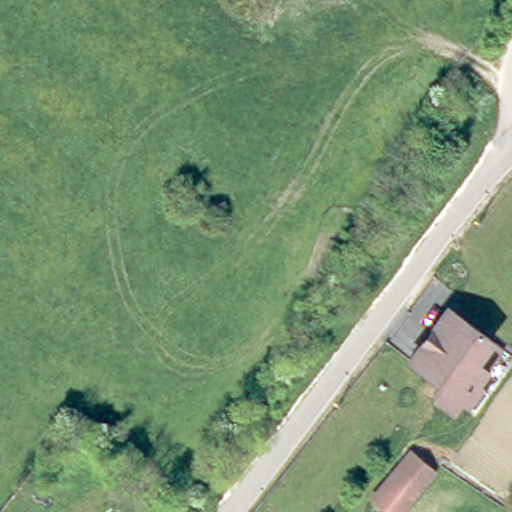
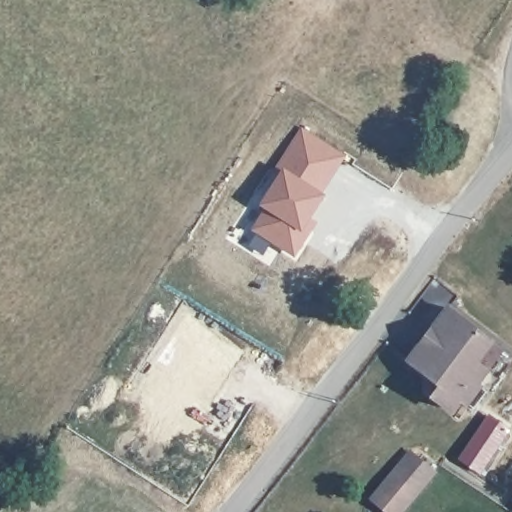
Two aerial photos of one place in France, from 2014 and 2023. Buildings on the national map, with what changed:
new [(252,229),(265,209),(260,205),(282,171),(275,167),(300,126),(347,155),(324,192),(327,194),(312,217),(319,222),(295,257),(252,229)]
unchanged [(473,385),(477,388),(466,402),(460,397),(451,409),(432,395),(440,383),(412,362),(435,332),(430,328),(447,307),(501,348),(473,385)]
new [(511,429),(480,474),(457,458),(487,413),(511,429)]
unchanged [(402,512),(389,512),(382,506),(373,500),(412,453),(417,458),(435,472),(402,512)]

